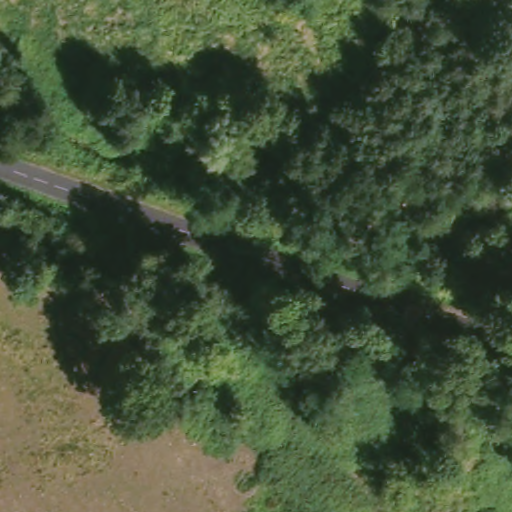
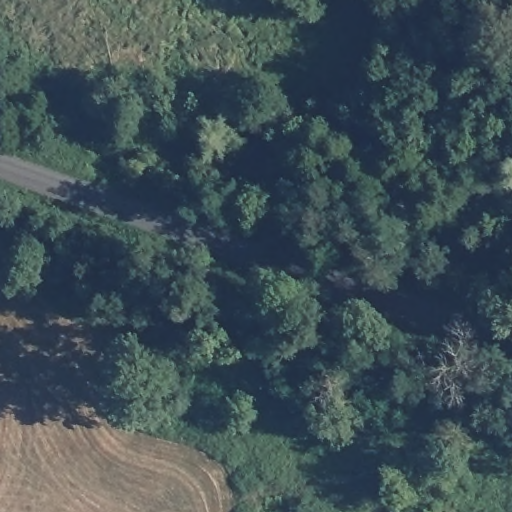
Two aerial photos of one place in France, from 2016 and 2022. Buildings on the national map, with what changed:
unchanged [(395,503),(382,493),(396,478),(405,488),(395,503)]
unchanged [(373,512),(365,512),(370,508),(373,512)]

